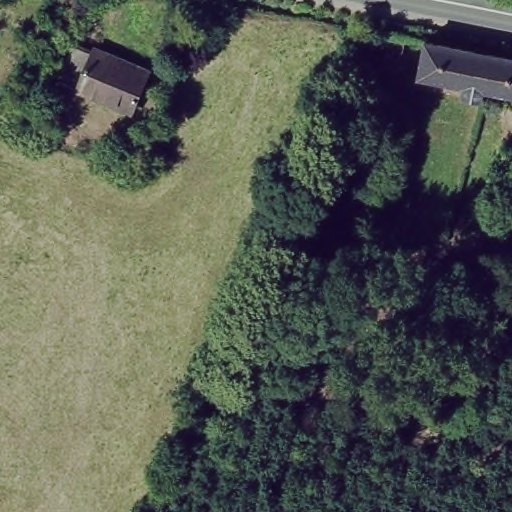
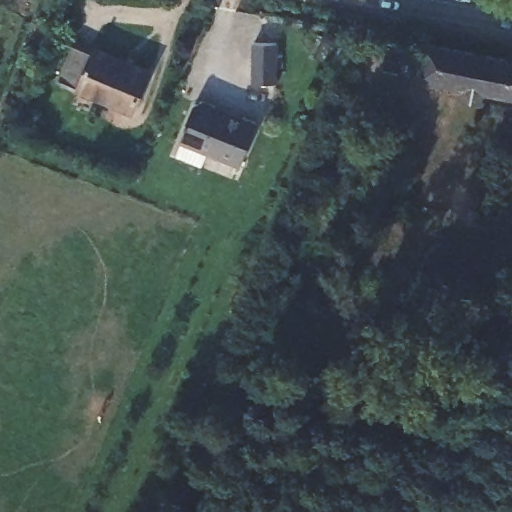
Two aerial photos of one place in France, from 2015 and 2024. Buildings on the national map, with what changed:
unchanged [(413,67),(420,30),(510,48),(512,42),(512,87),(480,81),(477,91),(456,87),(458,76),(413,67)]
unchanged [(133,102),(97,87),(96,90),(58,75),(73,39),(93,46),(95,42),(148,65),(133,102)]
unchanged [(397,72),(382,70),(388,39),(405,41),(397,72)]
new [(251,41),(274,42),(272,82),(250,81),(251,41)]
new [(197,100),(210,105),(227,112),(225,117),(235,122),(238,116),(253,124),(235,165),(174,139),(190,102),(197,100)]
unchanged [(505,157),(505,156),(507,143),(512,144),(512,176),(502,174),(505,157)]

